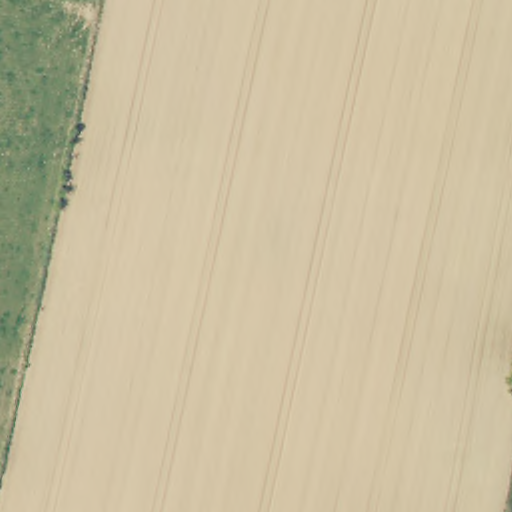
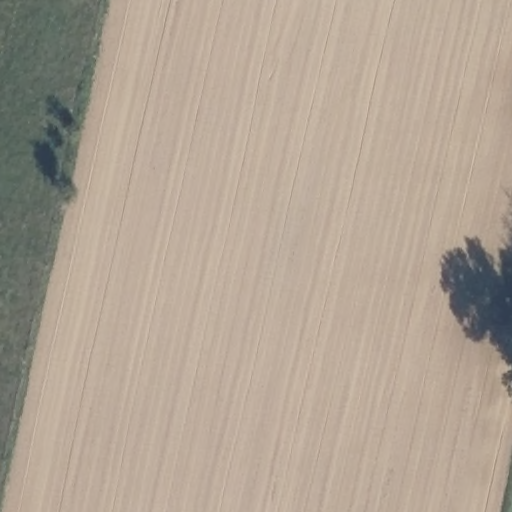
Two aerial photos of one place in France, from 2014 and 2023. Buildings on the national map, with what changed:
[]

